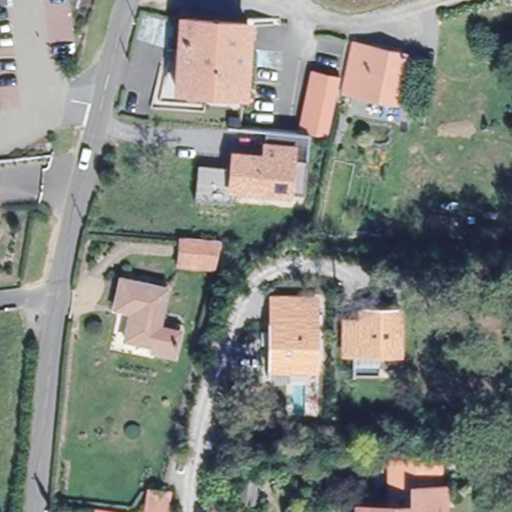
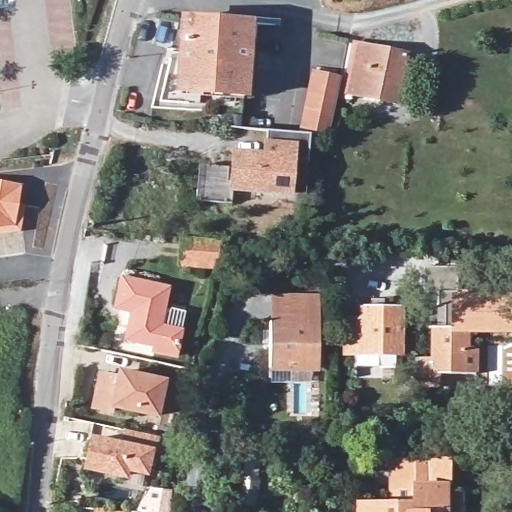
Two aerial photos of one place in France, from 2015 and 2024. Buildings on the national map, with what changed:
unchanged [(243,94),(180,89),(184,19),(248,24),(243,94)]
unchanged [(342,99),(343,92),(353,44),(405,55),(396,103),(351,94),(349,101),(342,99)]
unchanged [(303,133),(315,72),(340,77),(328,136),(313,134),(303,133)]
unchanged [(236,169),(237,153),(267,155),(269,131),(303,133),(313,134),(311,161),(308,194),(293,193),(235,188),(234,203),(199,200),(199,190),(201,166),(236,169)]
new [(0,233),(0,180),(21,185),(17,205),(24,206),(20,231),(0,233)]
unchanged [(499,241),(478,239),(478,226),(500,227),(499,241)]
unchanged [(221,240),(214,267),(180,264),(182,238),(221,240)]
new [(465,372),(435,372),(435,386),(415,386),(415,357),(433,358),(434,327),(436,327),(437,306),(437,292),(422,292),(422,265),(456,266),(456,291),(503,291),(503,298),(512,298),(512,327),(465,327),(465,351),(475,352),(475,372),(465,372)]
unchanged [(121,279),(168,288),(159,327),(180,331),(175,356),(152,351),(153,346),(124,339),(130,312),(115,309),(121,279)]
unchanged [(268,295),(317,295),(318,372),(268,372),(268,295)]
unchanged [(357,317),(357,307),(402,306),(403,357),(341,356),(342,318),(357,317)]
new [(99,375),(117,379),(118,373),(163,382),(155,416),(113,407),(112,412),(92,408),(99,375)]
new [(92,439),(122,445),(126,429),(156,436),(153,453),(151,452),(146,473),(127,469),(125,477),(86,468),(92,439)]
unchanged [(386,506),(386,486),(386,461),(401,461),(427,461),(437,461),(437,487),(437,512),(354,512),(354,506),(386,506)]
unchanged [(143,493),(152,494),(164,494),(163,512),(141,512),(142,509),(143,493)]
unchanged [(247,511),(247,512),(210,512),(210,509),(247,511)]

